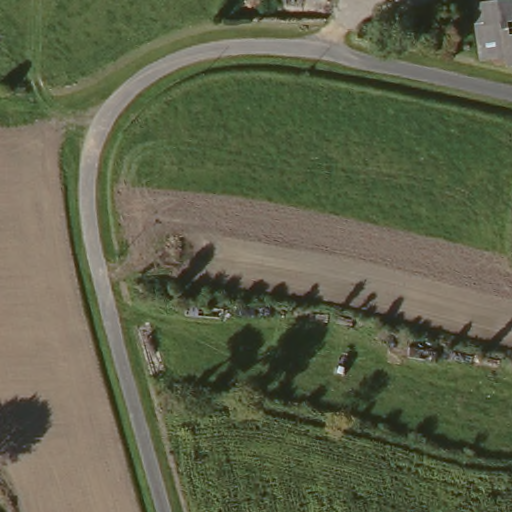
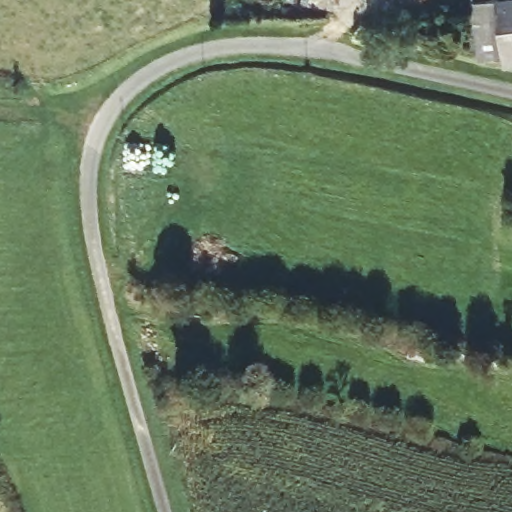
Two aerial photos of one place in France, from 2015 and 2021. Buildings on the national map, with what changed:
unchanged [(478,56),(471,3),(495,0),(496,0),(503,53),(478,56)]
unchanged [(503,53),(496,0),(512,0),(512,52),(503,53)]

